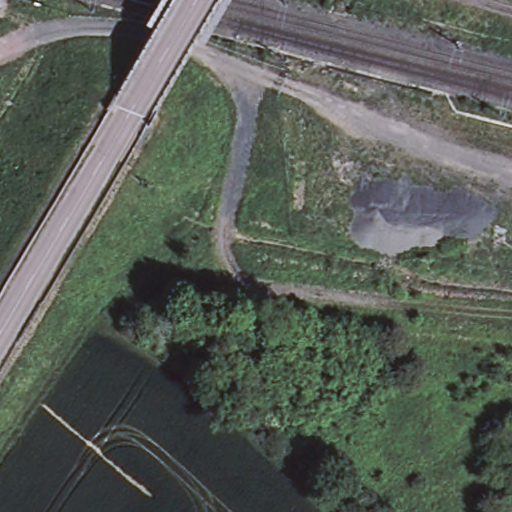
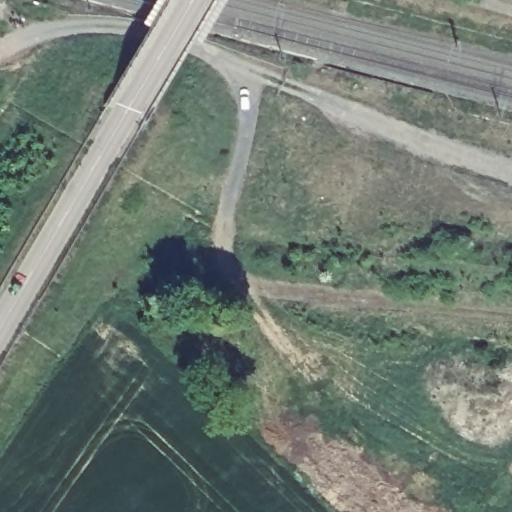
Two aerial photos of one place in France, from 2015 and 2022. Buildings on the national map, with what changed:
unchanged [(275,54),(269,76),(247,70),(253,48),(275,54)]

